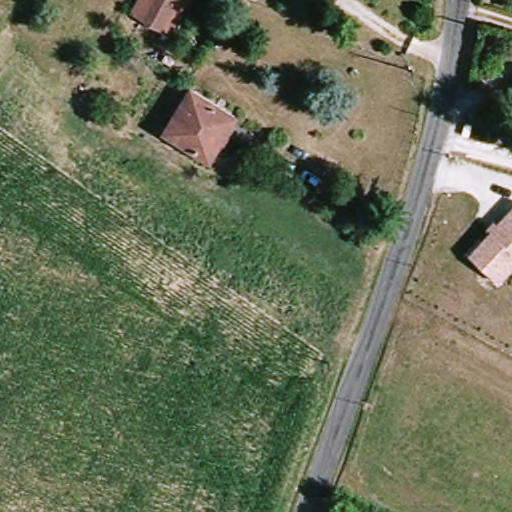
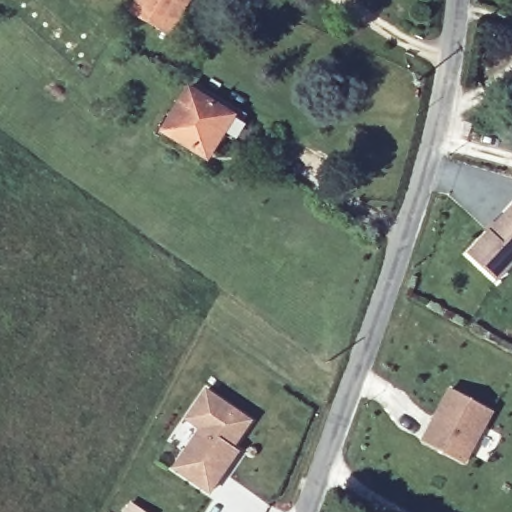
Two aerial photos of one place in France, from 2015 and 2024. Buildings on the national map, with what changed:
unchanged [(137,9),(142,0),(197,0),(179,33),(137,9)]
unchanged [(173,131),(198,87),(238,109),(214,153),(173,131)]
unchanged [(469,252),(512,207),(512,268),(501,280),(469,252)]
new [(225,469),(212,489),(176,464),(203,425),(189,415),(208,387),(252,417),(234,444),(240,449),(225,469)]
new [(422,441),(449,388),(495,412),(466,465),(422,441)]
new [(134,502),(149,512),(127,512),(134,502)]

